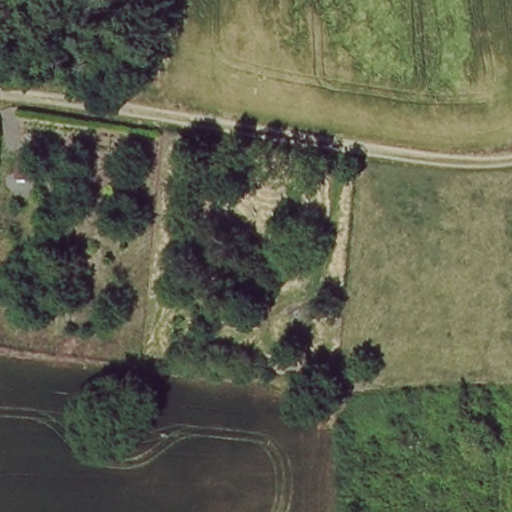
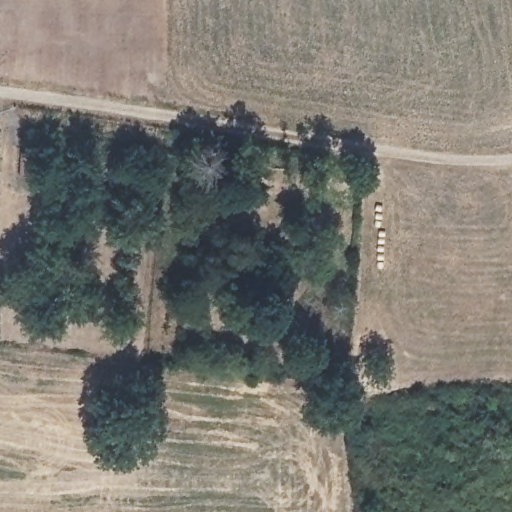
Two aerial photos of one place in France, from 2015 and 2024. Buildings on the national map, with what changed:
unchanged [(19,178),(20,150),(39,151),(38,179),(19,178)]

